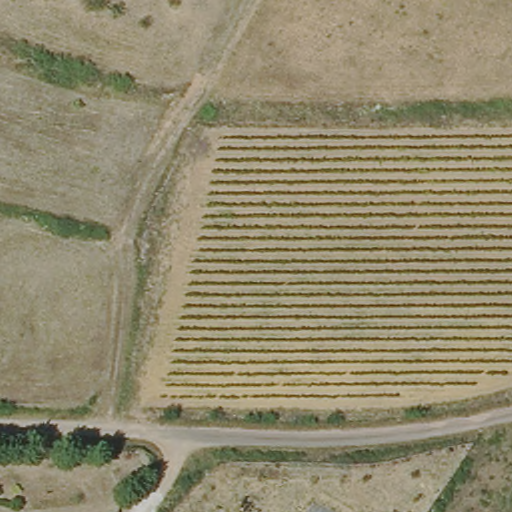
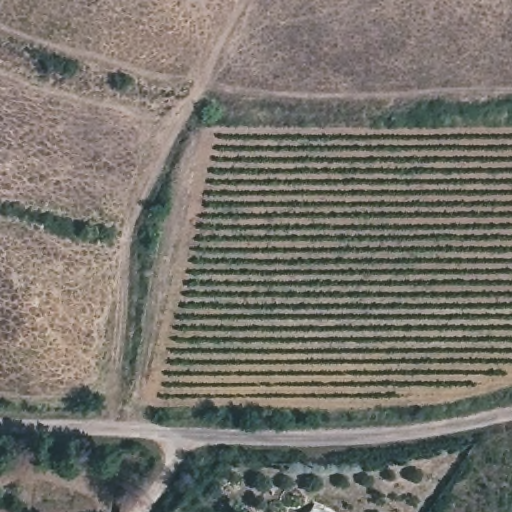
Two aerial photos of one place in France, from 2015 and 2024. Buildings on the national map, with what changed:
[]

